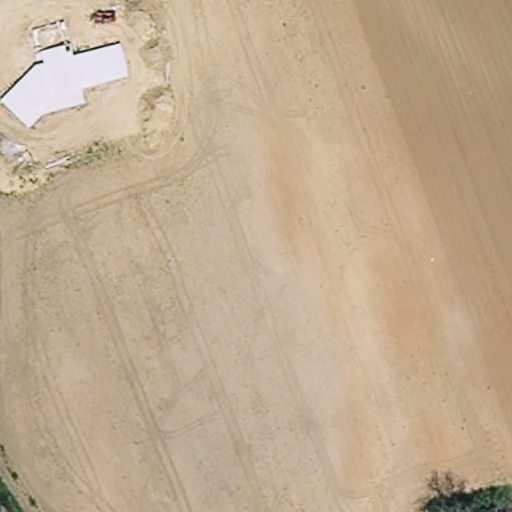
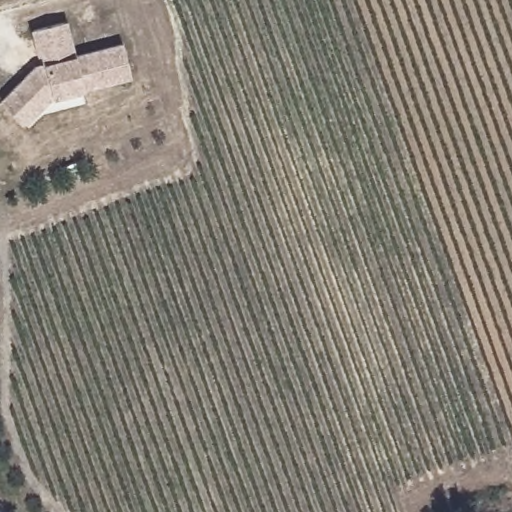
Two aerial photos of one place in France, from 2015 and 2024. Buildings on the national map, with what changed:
new [(38,61),(30,29),(67,21),(74,55),(120,43),(130,78),(85,89),(51,98),(23,126),(0,103),(0,100),(38,61)]

